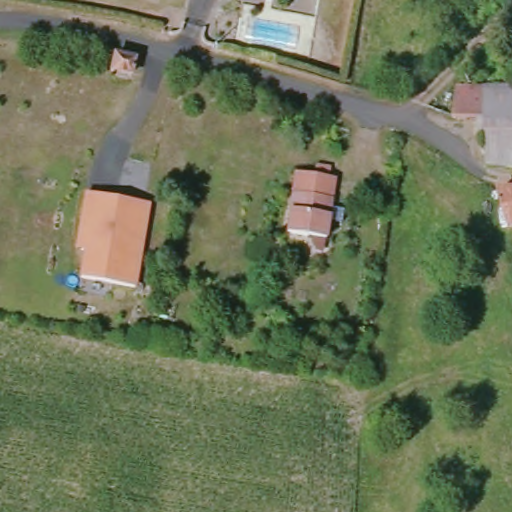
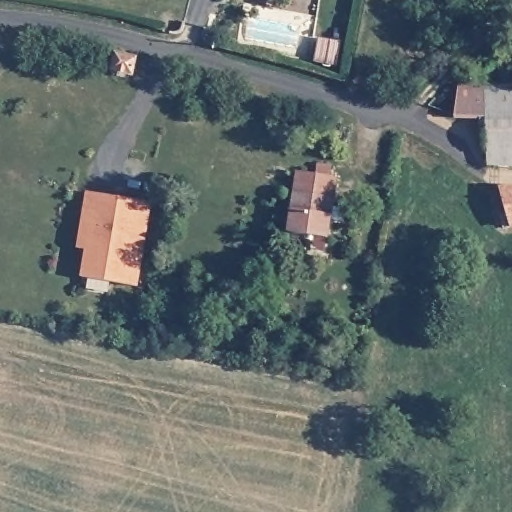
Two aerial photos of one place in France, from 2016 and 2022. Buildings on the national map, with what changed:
unchanged [(136,60),(133,74),(115,69),(118,55),(136,60)]
unchanged [(486,119),(461,118),(459,115),(456,85),(512,85),(512,165),(487,163),(486,119)]
unchanged [(331,180),(323,240),(284,234),(292,174),(331,180)]
unchanged [(512,192),(512,227),(507,230),(496,191),(512,192)]
unchanged [(80,279),(83,251),(78,250),(81,225),(86,195),(130,200),(148,203),(148,214),(146,214),(137,287),(80,279)]

